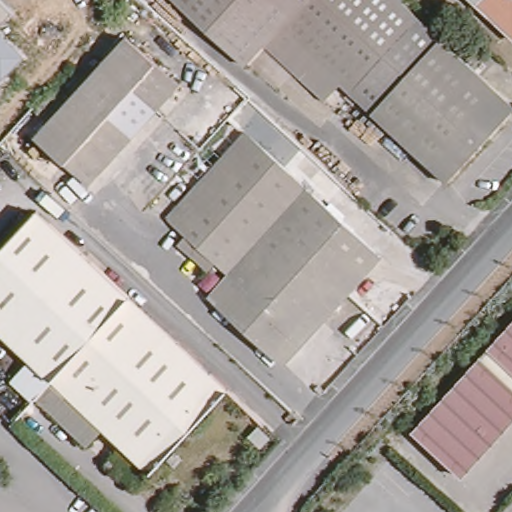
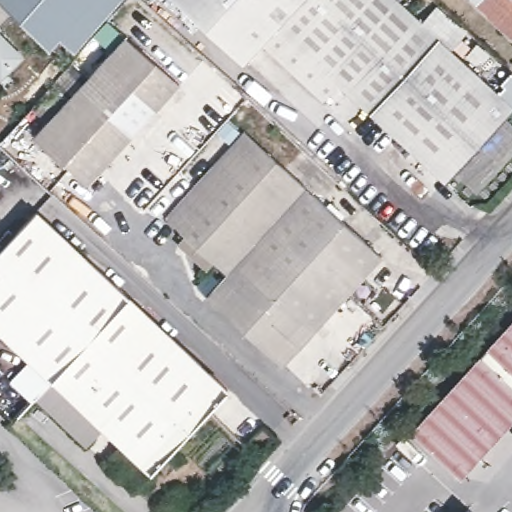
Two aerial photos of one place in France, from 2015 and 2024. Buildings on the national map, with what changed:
new [(61,40),(53,49),(13,14),(0,3),(0,0),(121,0),(76,52),(61,40)]
unchanged [(480,51),(491,60),(484,68),(512,93),(512,99),(444,173),(341,79),(322,99),(258,41),(244,56),(184,0),(407,0),(473,59),(480,51)]
unchanged [(512,0),(512,33),(476,0),(512,0)]
unchanged [(13,14),(0,27),(0,3),(13,14)]
unchanged [(25,55),(1,80),(0,80),(0,30),(25,55)]
unchanged [(185,81),(110,164),(57,119),(132,36),(185,81)]
unchanged [(91,188),(37,141),(57,119),(110,164),(91,188)]
unchanged [(185,243),(192,234),(172,215),(251,129),(385,249),(286,358),(213,290),(232,271),(219,259),(212,268),(185,243)]
unchanged [(226,386),(150,467),(0,328),(0,244),(36,207),(226,386)]
unchanged [(458,474),(412,433),(512,324),(512,415),(458,474)]

